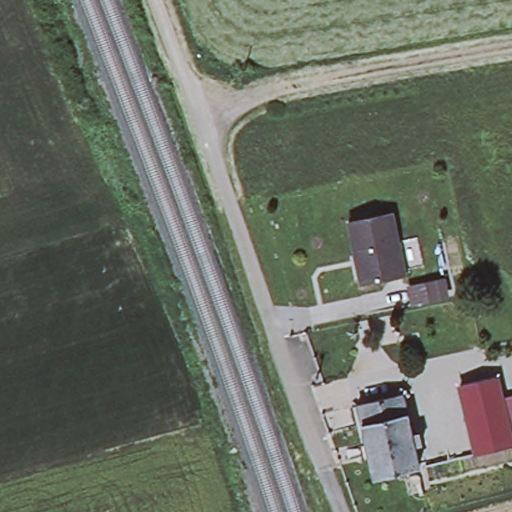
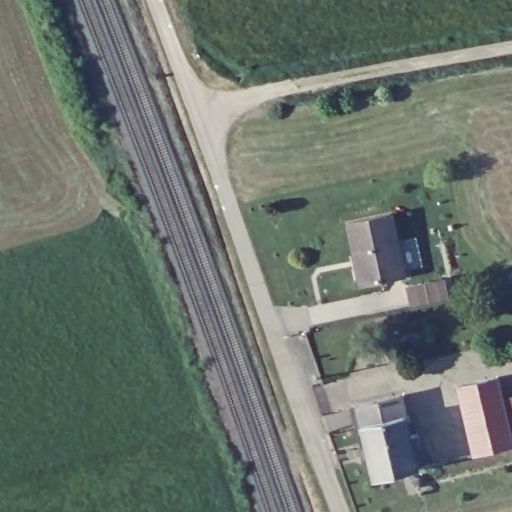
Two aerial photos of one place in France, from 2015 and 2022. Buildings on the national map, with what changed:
unchanged [(401,280),(359,289),(344,226),(388,218),(401,280)]
unchanged [(501,379),(504,403),(512,402),(512,456),(474,463),(457,382),(501,379)]
unchanged [(412,444),(419,442),(422,455),(415,457),(420,478),(374,489),(358,415),(403,404),(412,444)]

